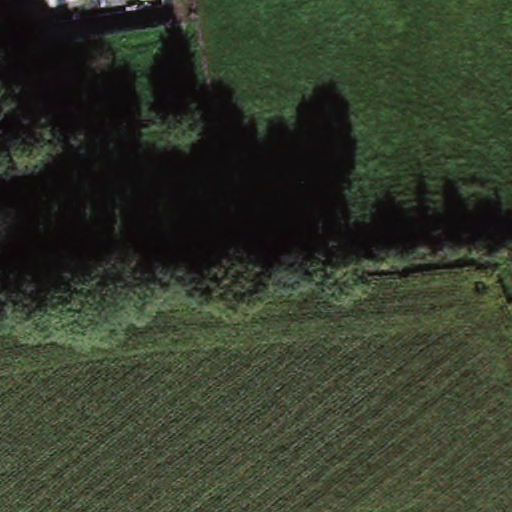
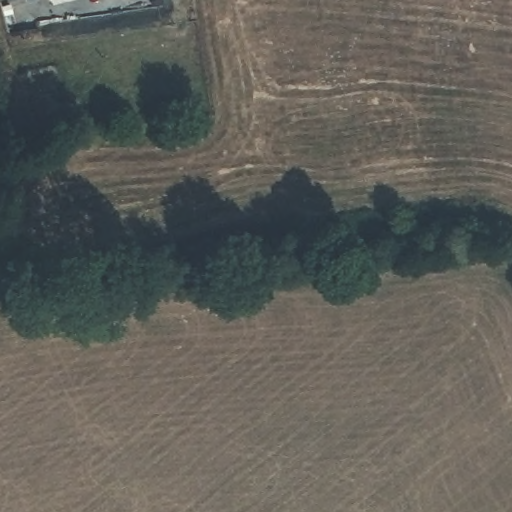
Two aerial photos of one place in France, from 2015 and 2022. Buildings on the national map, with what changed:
unchanged [(8,0),(15,0),(9,2),(8,0)]

